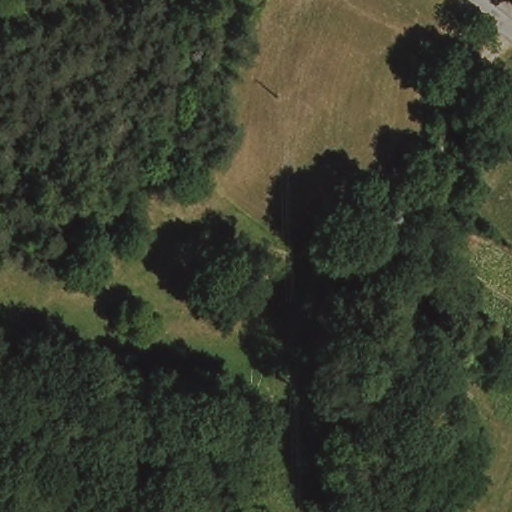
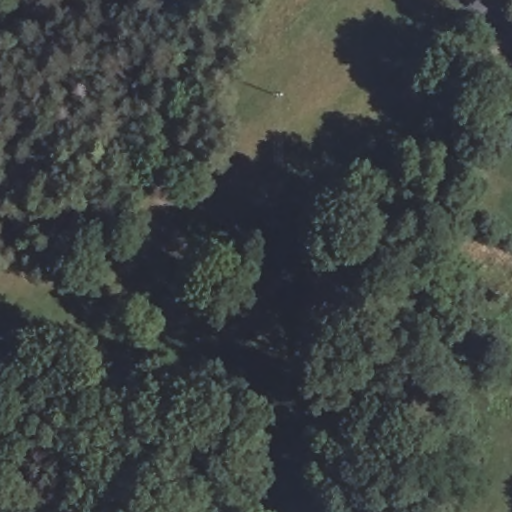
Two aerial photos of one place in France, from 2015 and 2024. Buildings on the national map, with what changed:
[]

